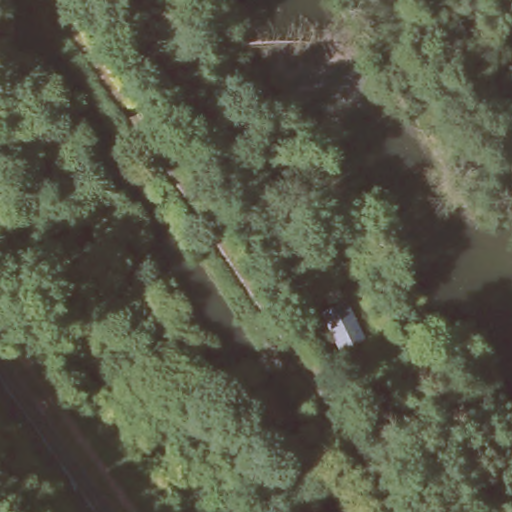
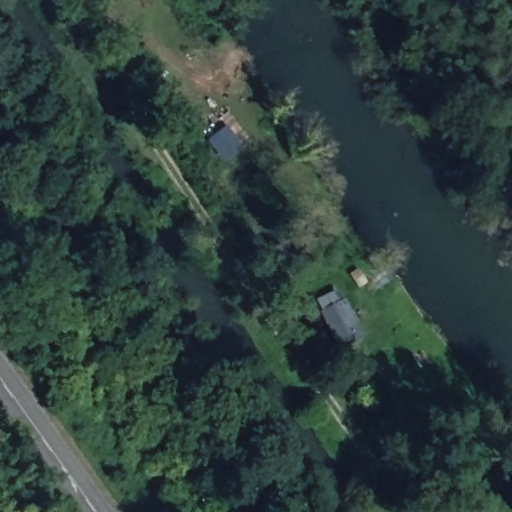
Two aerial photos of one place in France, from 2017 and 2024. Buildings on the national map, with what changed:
unchanged [(347,283),(365,332),(334,343),(320,302),(347,283)]

